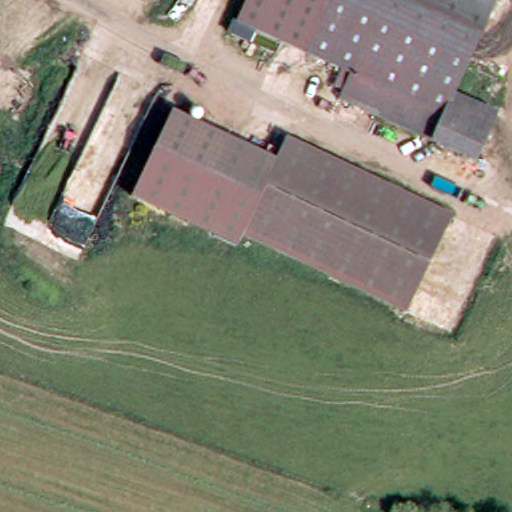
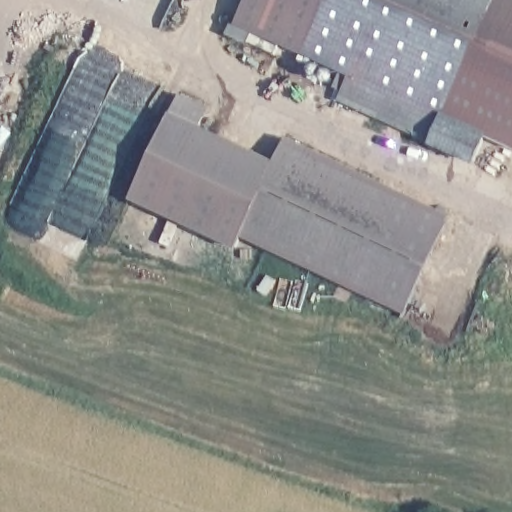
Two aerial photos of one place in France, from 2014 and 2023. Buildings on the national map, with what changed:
unchanged [(238,21),(247,0),(324,0),(301,52),(238,21)]
unchanged [(301,52),(324,0),(493,0),(450,92),(494,113),(471,160),(333,93),(342,71),(301,52)]
new [(494,113),(450,92),(493,0),(512,0),(512,147),(484,134),(494,113)]
unchanged [(243,231),(241,234),(236,247),(133,198),(173,111),(276,160),(243,231)]
unchanged [(241,234),(243,231),(276,160),(288,137),(454,217),(407,315),(241,234)]

